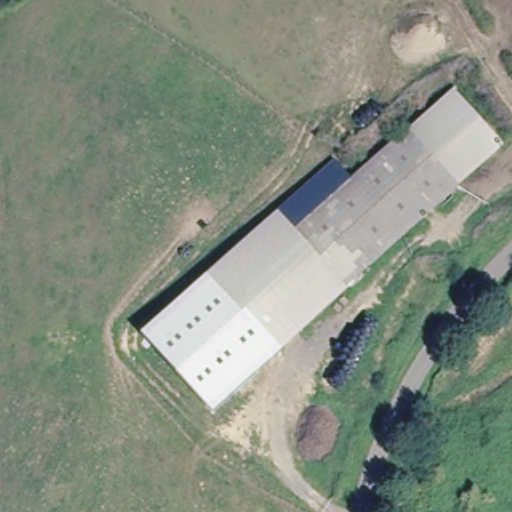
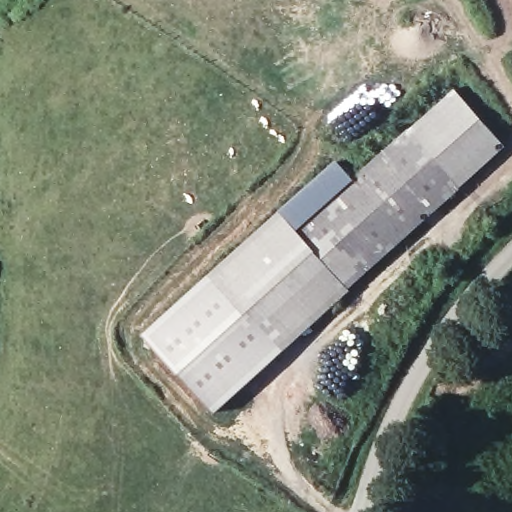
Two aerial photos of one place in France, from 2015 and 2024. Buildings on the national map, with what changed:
unchanged [(335,165),(348,181),(449,91),(502,150),(346,291),(277,214),(335,165)]
unchanged [(346,291),(350,294),(280,357),(208,276),(277,214),(346,291)]
unchanged [(214,412),(144,334),(208,276),(280,357),(214,412)]

